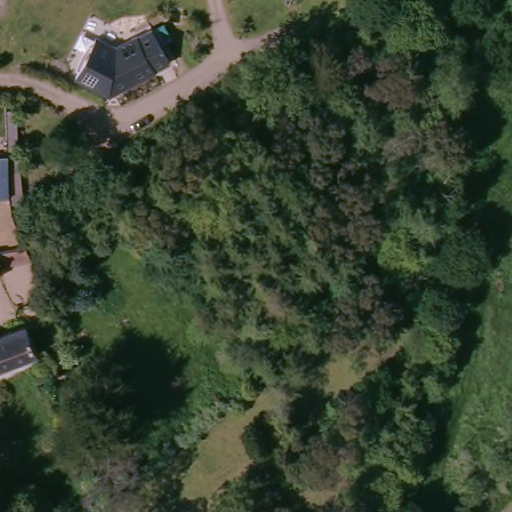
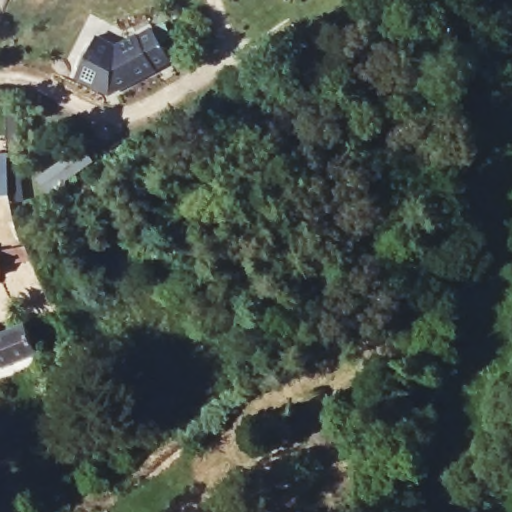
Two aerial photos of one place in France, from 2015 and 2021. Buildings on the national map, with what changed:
unchanged [(109,95),(67,76),(84,37),(111,49),(154,30),(169,64),(109,95)]
unchanged [(0,153),(9,152),(11,191),(0,193),(0,153)]
unchanged [(0,282),(0,246),(1,246),(4,281),(0,282)]
unchanged [(0,334),(26,325),(39,355),(0,370),(0,334)]

